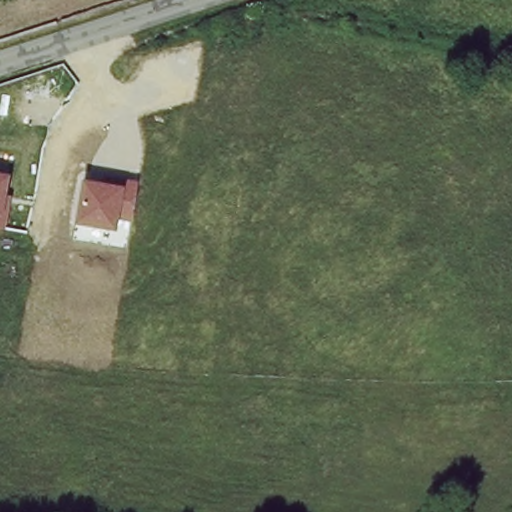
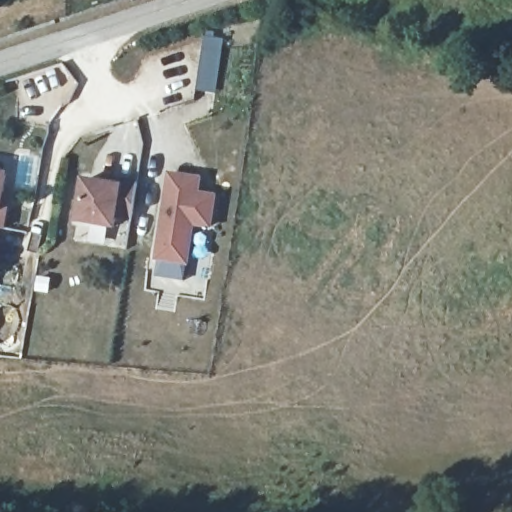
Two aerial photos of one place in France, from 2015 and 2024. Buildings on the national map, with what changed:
new [(168,170),(203,175),(201,192),(218,193),(213,229),(193,227),(188,265),(154,261),(168,170)]
unchanged [(13,195),(6,230),(0,229),(0,173),(10,175),(6,193),(13,195)]
unchanged [(99,181),(100,174),(138,181),(130,223),(118,221),(116,230),(75,223),(83,178),(99,181)]

